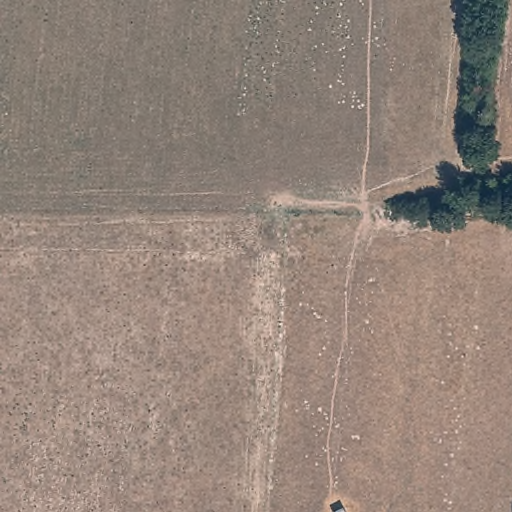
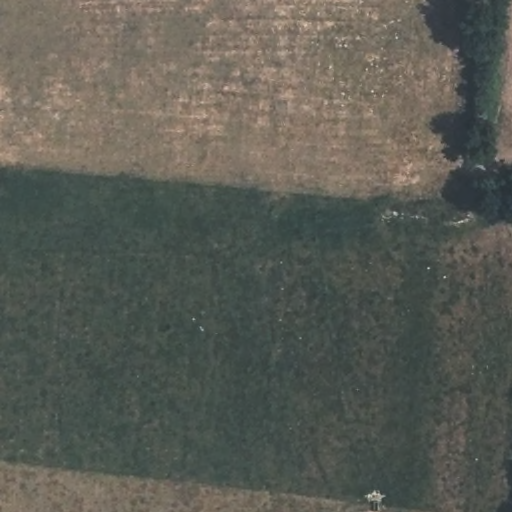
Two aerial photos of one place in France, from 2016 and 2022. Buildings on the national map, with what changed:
[]

